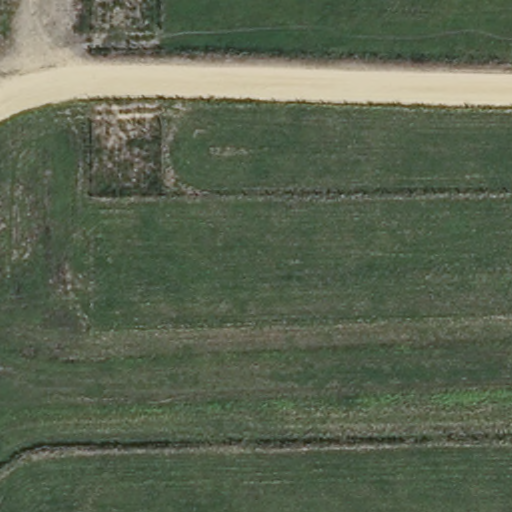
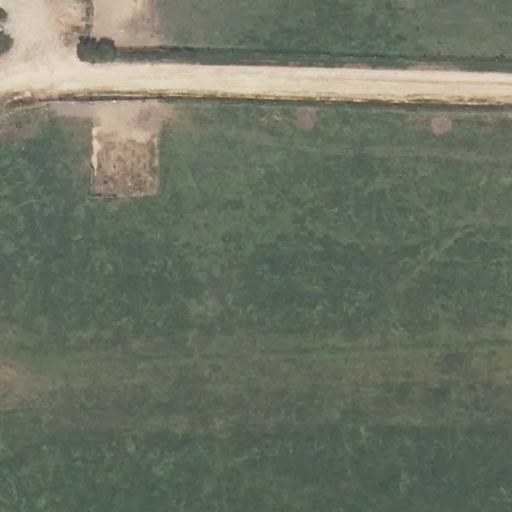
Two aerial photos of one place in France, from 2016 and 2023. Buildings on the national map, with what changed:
unchanged [(0,26),(0,0),(1,0),(0,26)]

